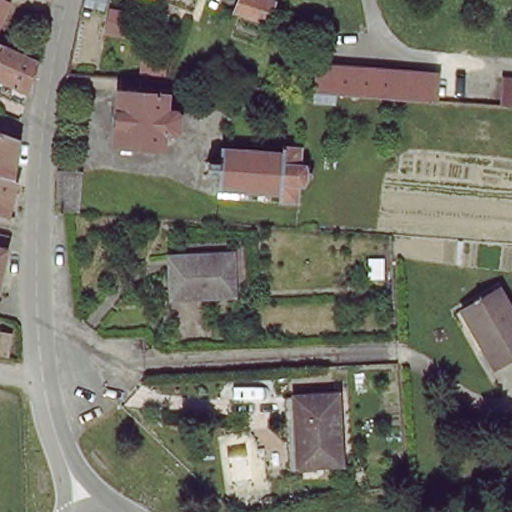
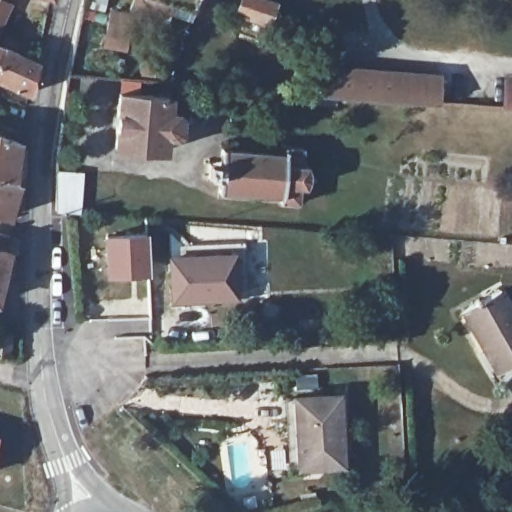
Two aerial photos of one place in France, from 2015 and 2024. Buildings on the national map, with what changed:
unchanged [(10,1),(0,24),(0,0),(6,0),(10,1)]
unchanged [(194,11),(159,0),(198,0),(194,11)]
unchanged [(276,2),(270,22),(238,11),(242,0),(270,0),(276,2)]
unchanged [(37,60),(34,83),(33,86),(25,105),(5,98),(10,83),(0,79),(0,43),(37,60)]
unchanged [(320,94),(322,65),(439,71),(438,101),(320,94)]
unchanged [(506,76),(512,77),(512,106),(504,105),(506,76)]
unchanged [(164,92),(163,108),(178,108),(177,129),(162,128),(162,145),(112,142),(115,88),(164,92)]
unchanged [(0,177),(0,136),(17,142),(13,181),(0,177)]
unchanged [(290,149),(291,143),(309,145),(309,163),(317,163),(316,186),(308,186),(307,204),(288,202),(288,194),(227,191),(227,176),(214,175),(214,158),(228,159),(228,146),(290,149)]
unchanged [(71,215),(60,214),(60,173),(85,175),(85,216),(71,215)]
unchanged [(19,183),(9,217),(0,215),(0,177),(13,181),(19,183)]
new [(146,230),(148,274),(102,275),(99,232),(146,230)]
unchanged [(10,235),(0,274),(0,232),(10,235)]
unchanged [(179,298),(176,253),(237,251),(240,295),(179,298)]
unchanged [(512,359),(491,369),(466,311),(506,292),(512,307),(512,359)]
unchanged [(296,395),(339,395),(336,463),(292,463),(296,395)]
new [(3,438),(0,451),(0,437),(3,438)]

